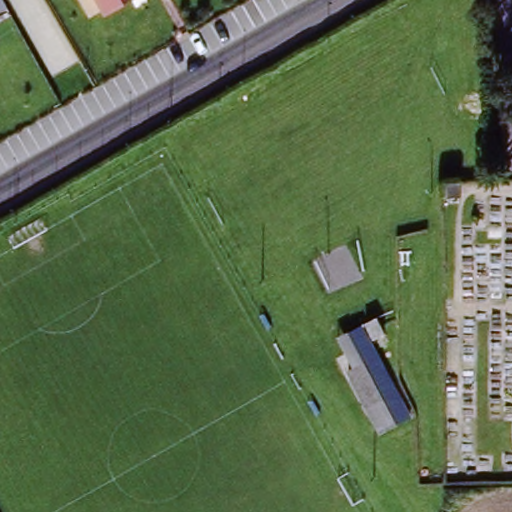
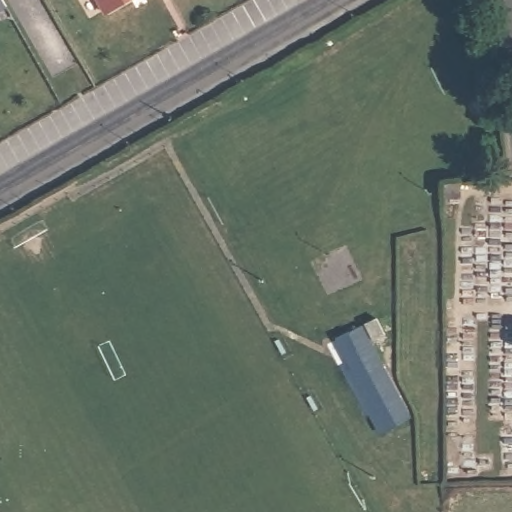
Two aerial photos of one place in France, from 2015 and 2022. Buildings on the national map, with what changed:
unchanged [(7,11),(0,16),(0,0),(7,11)]
unchanged [(104,16),(95,0),(133,0),(104,16)]
unchanged [(350,372),(365,365),(360,357),(352,337),(367,330),(377,349),(400,400),(410,421),(380,435),(368,411),(350,372)]

